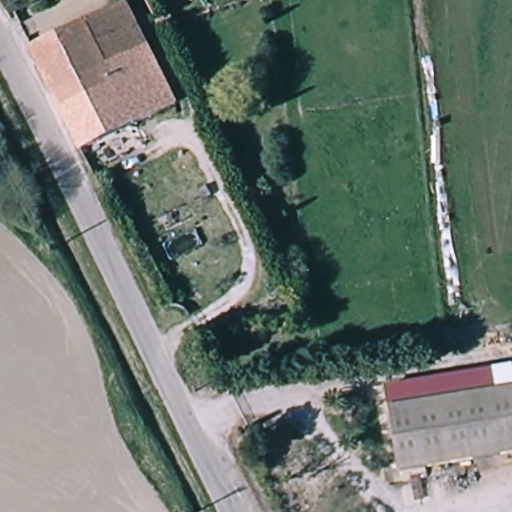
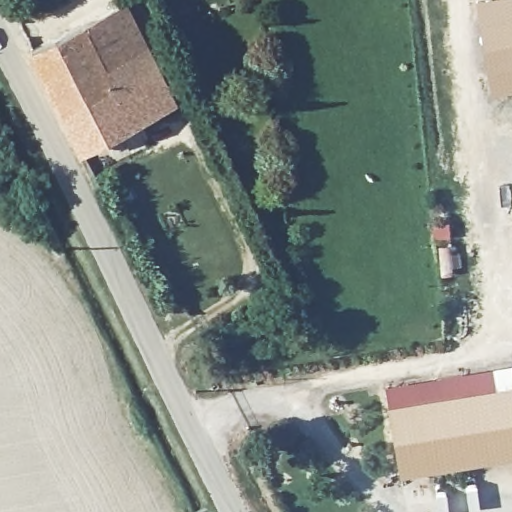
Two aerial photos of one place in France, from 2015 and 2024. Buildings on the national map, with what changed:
new [(512,0),(512,92),(490,96),(475,1),(478,0),(512,0)]
unchanged [(128,8),(179,105),(80,155),(52,101),(26,56),(128,8)]
unchanged [(512,370),(512,457),(402,475),(389,389),(512,370)]

